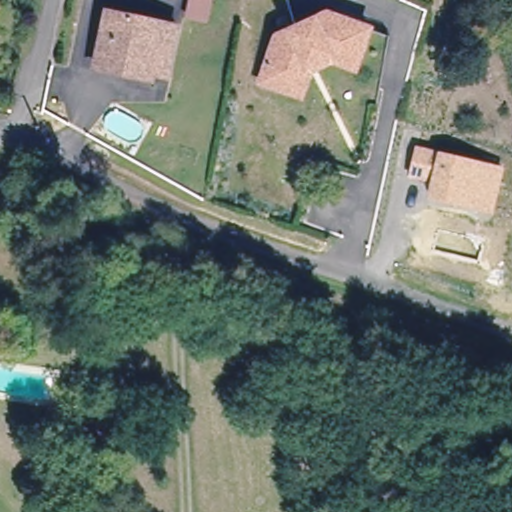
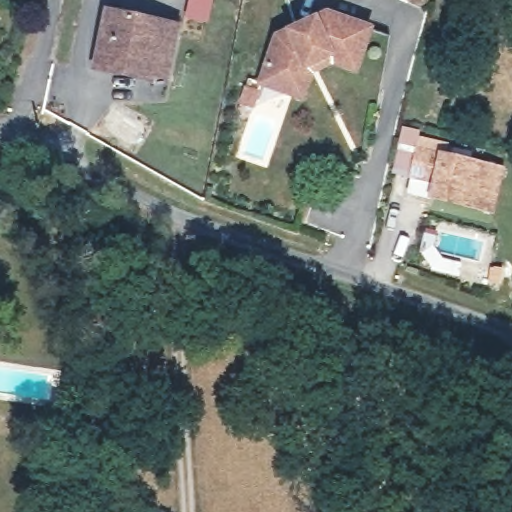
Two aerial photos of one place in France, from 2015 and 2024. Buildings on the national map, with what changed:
unchanged [(211,21),(190,18),(192,0),(215,0),(211,21)]
unchanged [(167,76),(155,73),(154,78),(95,64),(107,12),(165,26),(180,29),(167,76)]
unchanged [(274,42),(321,13),(358,21),(350,57),(330,53),(306,68),(303,82),(267,74),(274,42)]
unchanged [(303,82),(306,68),(330,53),(350,57),(358,21),(365,22),(355,70),(330,64),(311,77),(306,99),(263,90),(267,74),(303,82)]
unchanged [(493,213),(478,210),(431,199),(435,183),(412,178),(418,152),(488,168),(502,171),(493,213)]

